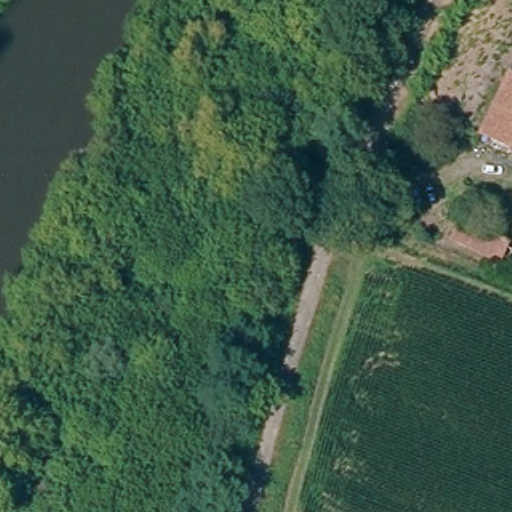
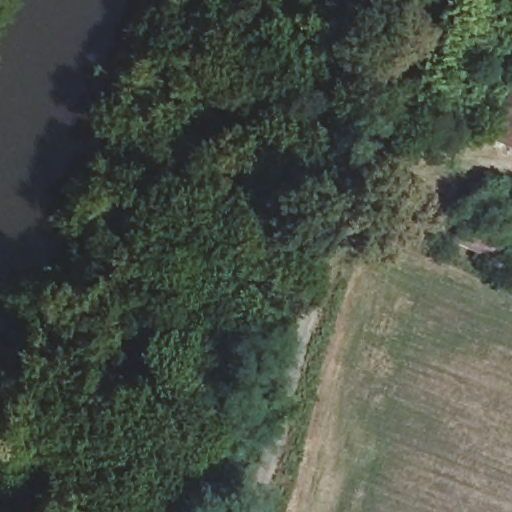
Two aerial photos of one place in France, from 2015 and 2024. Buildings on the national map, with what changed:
unchanged [(512,76),(512,144),(485,131),(495,108),(512,76)]
unchanged [(364,186),(374,190),(368,201),(359,197),(364,186)]
unchanged [(460,225),(506,248),(499,263),(452,243),(460,225)]

